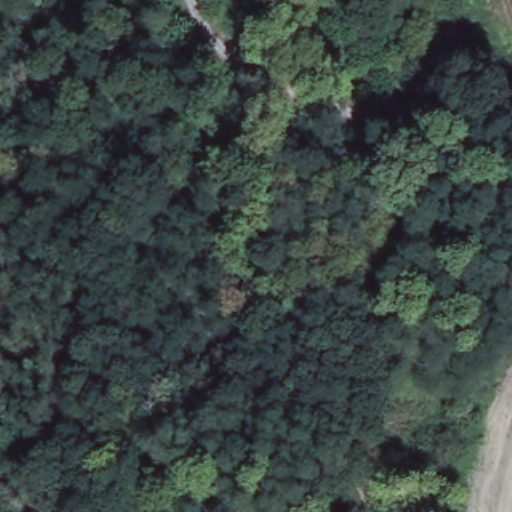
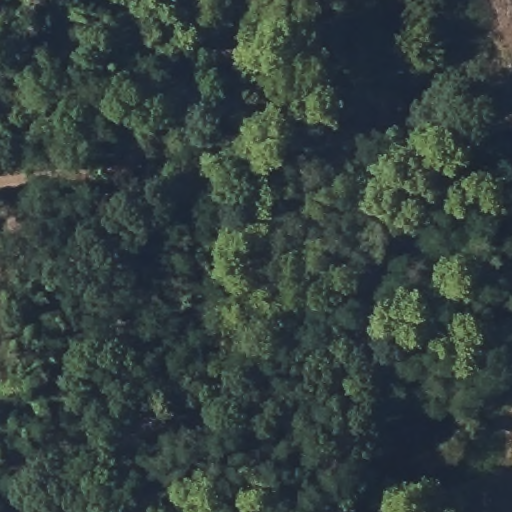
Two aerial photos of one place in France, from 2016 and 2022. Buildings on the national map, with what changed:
[]

